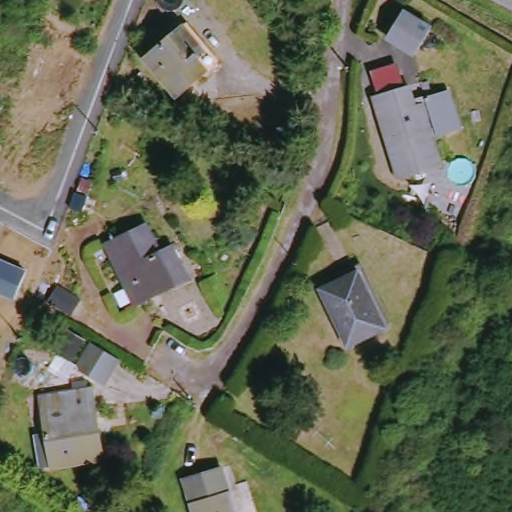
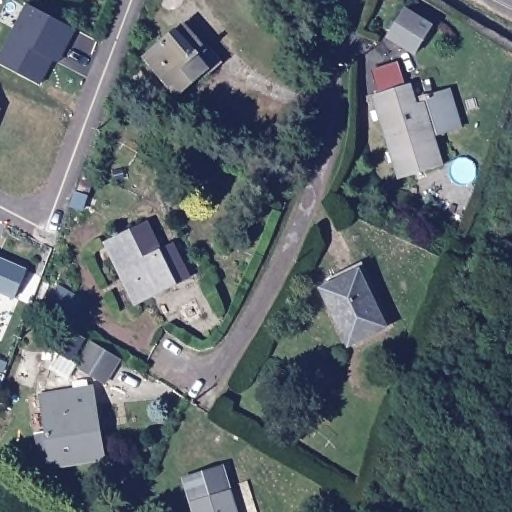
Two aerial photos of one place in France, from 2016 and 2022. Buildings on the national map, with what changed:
new [(13,23),(27,5),(75,30),(59,63),(55,61),(41,86),(0,64),(0,56),(13,23)]
unchanged [(434,22),(421,49),(391,34),(405,7),(434,22)]
unchanged [(186,26),(210,52),(202,58),(212,70),(181,96),(149,58),(186,26)]
unchanged [(442,169),(401,183),(375,99),(410,89),(415,104),(425,137),(431,135),(433,140),(442,169)]
unchanged [(431,135),(425,137),(415,104),(446,94),(460,133),(433,140),(431,135)]
unchanged [(1,110),(0,112),(0,110),(1,110)]
unchanged [(184,288),(145,308),(118,248),(156,229),(170,257),(183,251),(190,267),(197,282),(184,288)]
unchanged [(26,269),(13,299),(0,294),(0,258),(26,269)]
unchanged [(388,326),(351,344),(325,290),(362,271),(388,326)]
unchanged [(125,363),(107,390),(80,374),(96,346),(125,363)]
unchanged [(51,438),(45,403),(95,393),(108,463),(68,470),(57,472),(51,438)]
unchanged [(246,512),(199,512),(188,478),(232,468),(246,512)]

